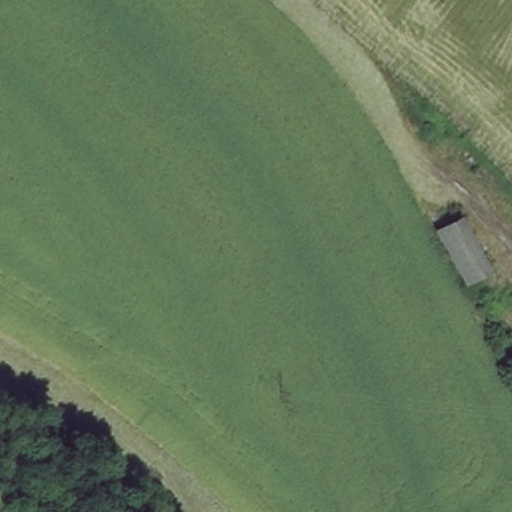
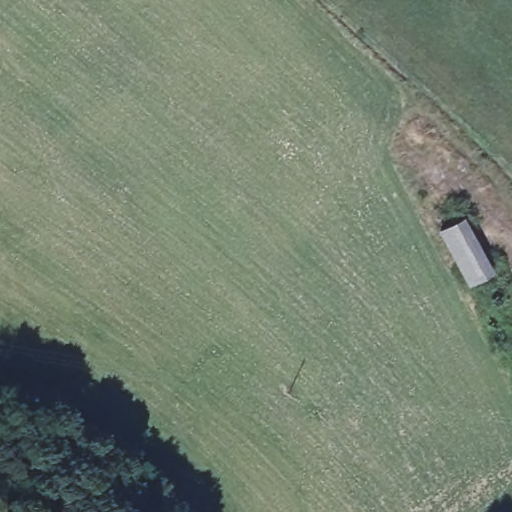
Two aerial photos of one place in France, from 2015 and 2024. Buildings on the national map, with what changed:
unchanged [(482,268),(462,277),(437,226),(457,217),(482,268)]

